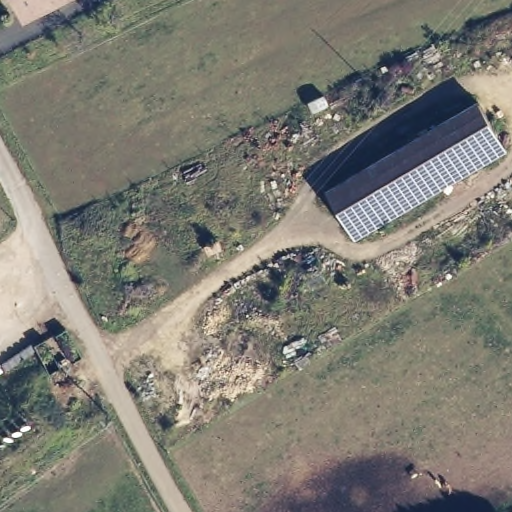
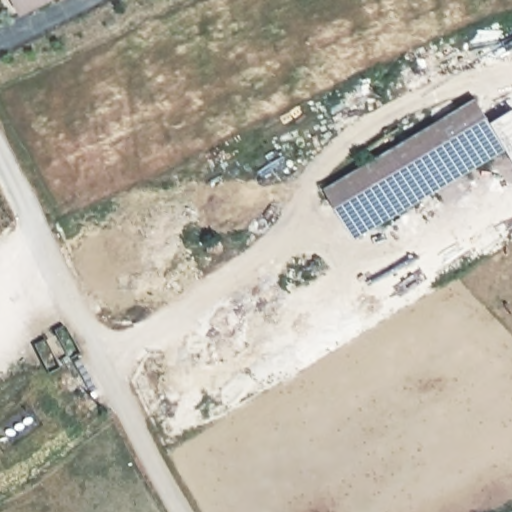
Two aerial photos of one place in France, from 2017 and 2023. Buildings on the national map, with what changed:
unchanged [(21,0),(34,0),(25,5),(21,0)]
unchanged [(478,96),(500,131),(345,221),(324,187),(478,96)]

